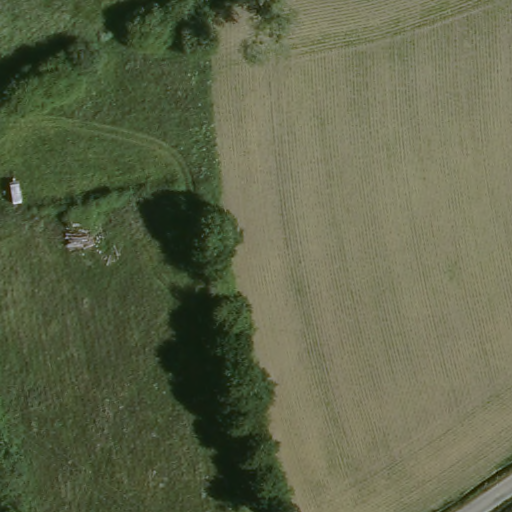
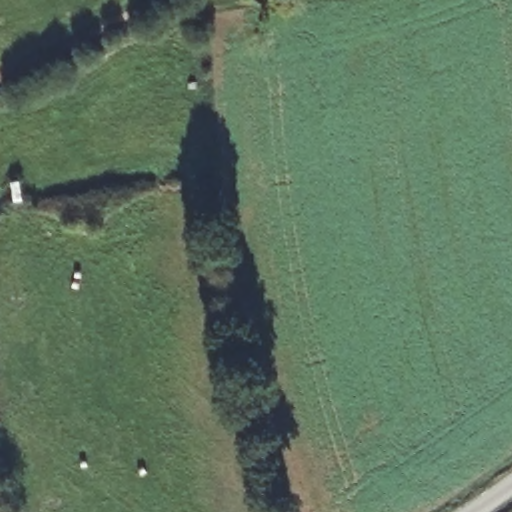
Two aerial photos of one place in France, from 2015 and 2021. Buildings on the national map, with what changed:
[]

